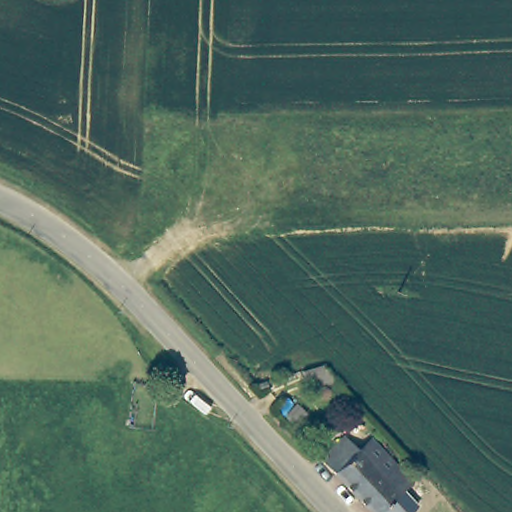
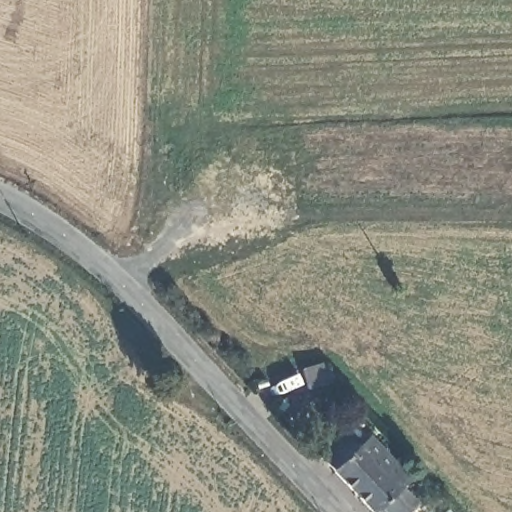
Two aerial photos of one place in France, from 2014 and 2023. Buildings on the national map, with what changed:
unchanged [(298,366),(312,362),(318,360),(333,376),(304,385),(298,366)]
unchanged [(353,444),(357,448),(358,446),(372,433),(396,459),(415,476),(376,512),(369,512),(320,458),(340,439),(345,435),(353,444)]

